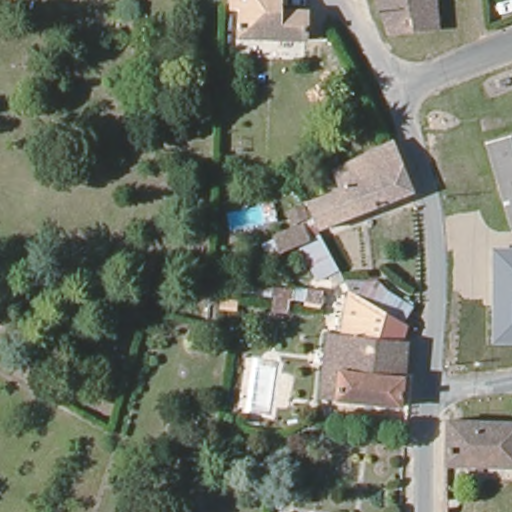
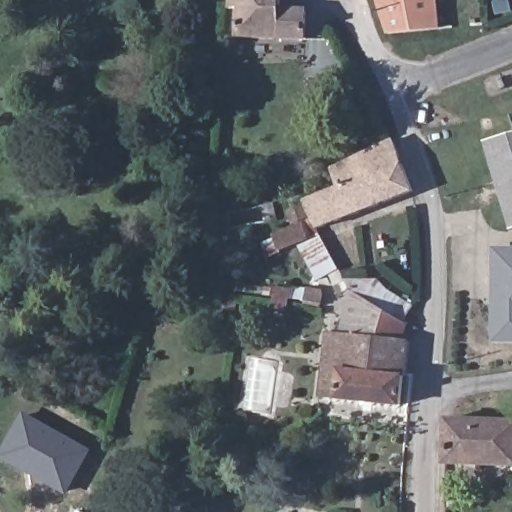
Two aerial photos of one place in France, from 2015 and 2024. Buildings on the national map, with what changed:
unchanged [(231,7),(231,2),(231,0),(281,0),(281,15),(305,17),(304,43),(240,40),(240,16),(231,15),(231,7)]
unchanged [(440,29),(387,34),(375,0),(436,0),(440,29)]
unchanged [(476,147),(512,135),(512,232),(501,235),(476,147)]
unchanged [(321,227),(315,217),(308,202),(327,195),(341,189),(333,170),(392,142),(413,191),(321,227)]
unchanged [(328,274),(318,279),(299,244),(281,252),(273,236),(302,222),(311,218),(320,235),(337,269),(347,290),(338,295),(328,274)]
new [(493,247),(512,247),(512,343),(493,342),(493,247)]
unchanged [(406,342),(400,407),(337,400),(338,396),(323,395),(330,333),(344,334),(344,312),(348,291),(361,298),(367,289),(383,299),(388,292),(412,308),(402,322),(405,323),(401,342),(406,342)]
unchanged [(292,292),(291,300),(287,300),(287,307),(277,306),(277,297),(275,297),(275,290),(292,292)]
new [(67,496),(0,458),(0,453),(23,412),(92,451),(67,496)]
unchanged [(512,419),(512,466),(443,463),(445,418),(512,419)]

